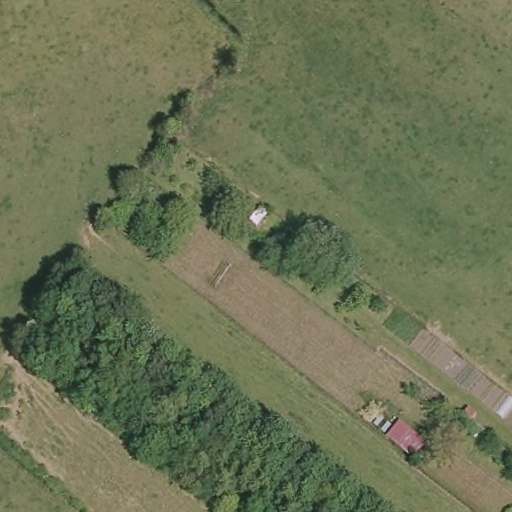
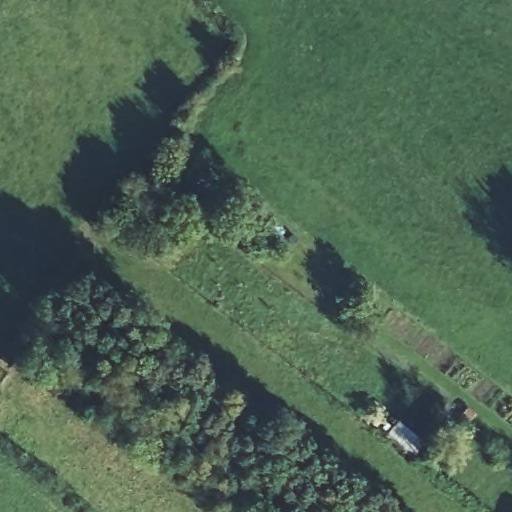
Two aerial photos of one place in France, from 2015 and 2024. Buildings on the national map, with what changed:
unchanged [(385,438),(398,423),(424,446),(411,460),(385,438)]

